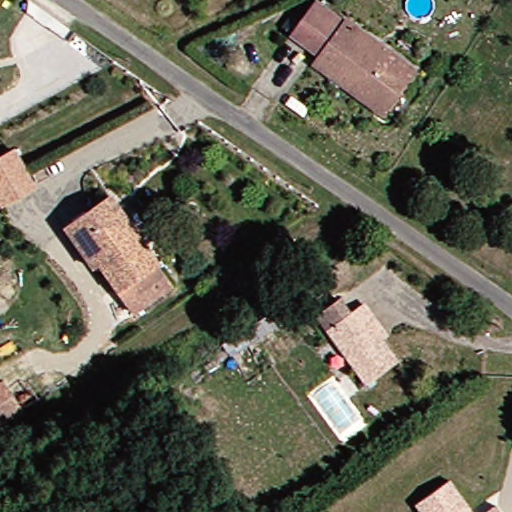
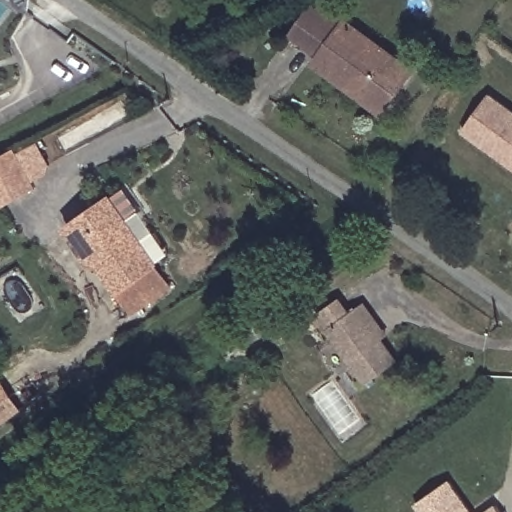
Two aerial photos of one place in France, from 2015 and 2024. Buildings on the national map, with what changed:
unchanged [(317,5),(416,77),(389,114),(290,42),(317,5)]
new [(493,92),(512,106),(512,168),(463,133),(493,92)]
unchanged [(13,151),(34,187),(2,206),(0,202),(0,158),(13,151)]
unchanged [(166,284),(127,311),(93,260),(83,267),(60,231),(70,225),(109,198),(166,284)]
unchanged [(364,325),(377,343),(394,365),(364,387),(325,332),(361,306),(371,320),(364,325)]
unchanged [(5,379),(22,411),(0,425),(0,382),(5,379)]
unchanged [(443,482),(464,512),(414,512),(410,506),(443,482)]
unchanged [(492,512),(486,512),(490,510),(492,512)]

